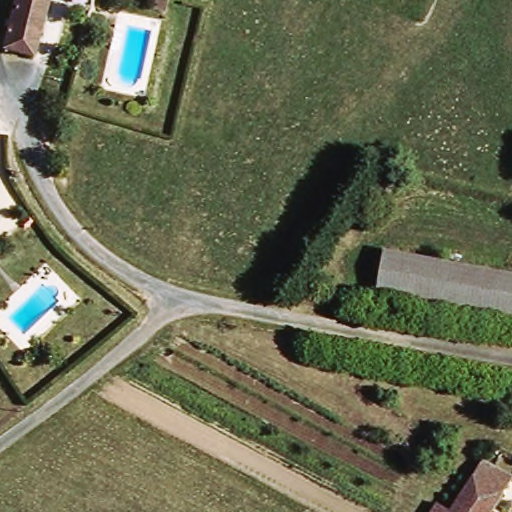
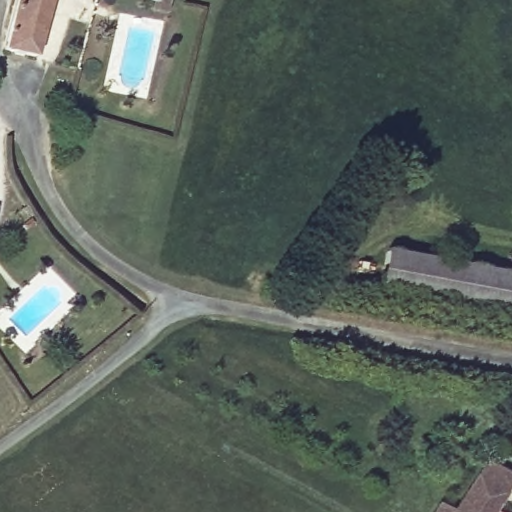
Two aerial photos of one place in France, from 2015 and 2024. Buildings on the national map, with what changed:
unchanged [(5,59),(5,40),(15,0),(48,0),(34,64),(5,59)]
unchanged [(387,253),(512,277),(512,315),(380,292),(387,253)]
unchanged [(439,500),(454,510),(485,462),(512,478),(512,481),(492,512),(431,512),(439,500)]

